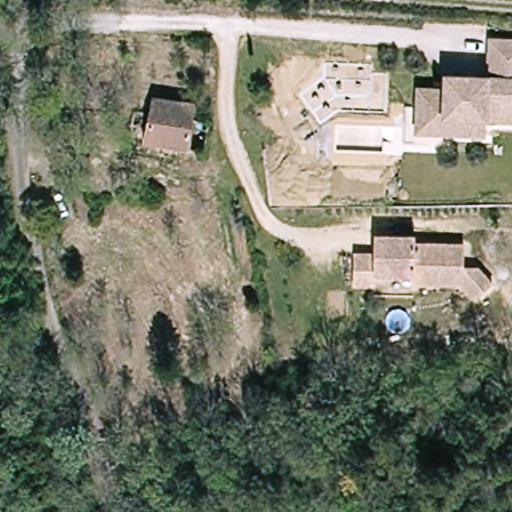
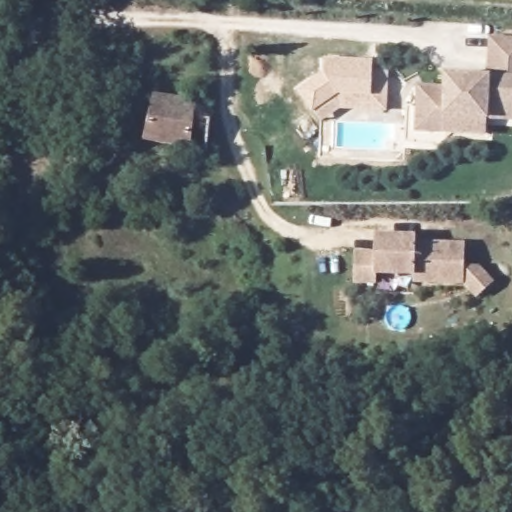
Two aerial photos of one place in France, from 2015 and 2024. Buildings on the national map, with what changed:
unchanged [(444,117),(446,132),(416,131),(418,87),(446,89),(446,76),(491,79),(493,36),(512,38),(512,120),(444,117)]
new [(341,110),(324,121),(316,111),(314,114),(298,90),(323,72),(324,57),(374,60),(374,69),(390,69),(387,111),(341,110)]
unchanged [(142,142),(146,98),(149,97),(190,101),(190,116),(213,117),(210,150),(189,147),(142,142)]
unchanged [(507,280),(494,292),(480,280),(428,279),(427,271),(388,270),(386,235),(428,235),(431,244),(480,246),(480,268),(495,268),(507,280)]
unchanged [(368,252),(383,254),(383,283),(368,281),(368,252)]

